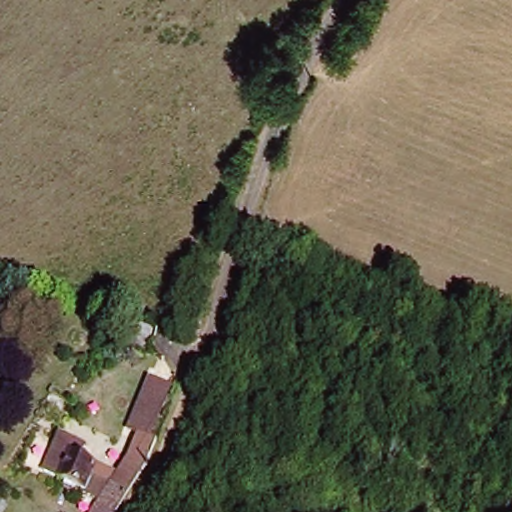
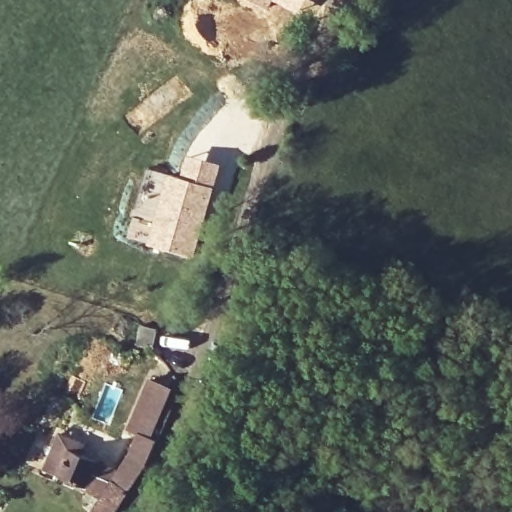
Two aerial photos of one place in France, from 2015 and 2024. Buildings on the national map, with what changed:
new [(272,1),(267,10),(249,0),(305,0),(297,14),(272,1)]
new [(146,168),(196,181),(203,158),(222,164),(192,259),(124,239),(146,168)]
unchanged [(107,504),(90,496),(92,493),(64,479),(65,476),(47,469),(60,434),(88,446),(85,459),(120,474),(140,432),(127,426),(150,380),(174,391),(154,434),(161,437),(138,496),(129,512),(101,512),(107,504)]

